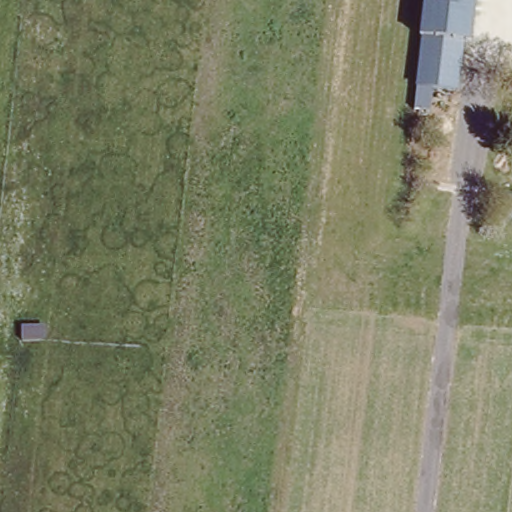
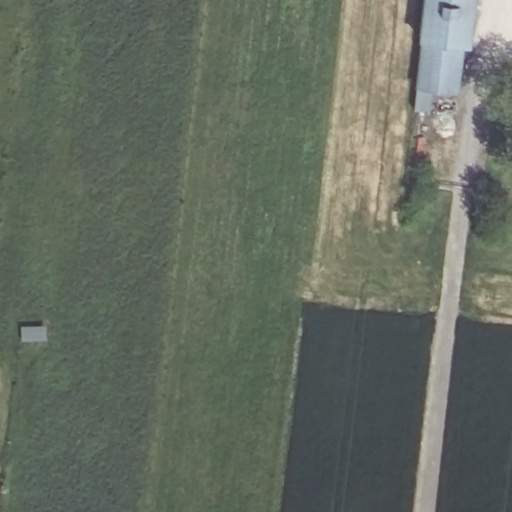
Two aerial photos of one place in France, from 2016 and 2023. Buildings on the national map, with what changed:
unchanged [(422,37),(426,0),(479,0),(475,43),(465,43),(462,91),(417,87),(422,37)]

